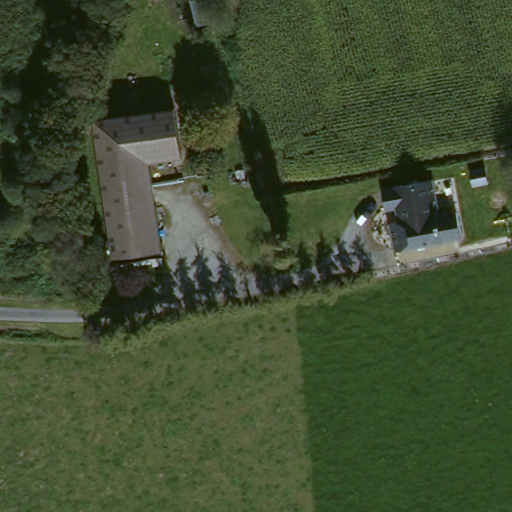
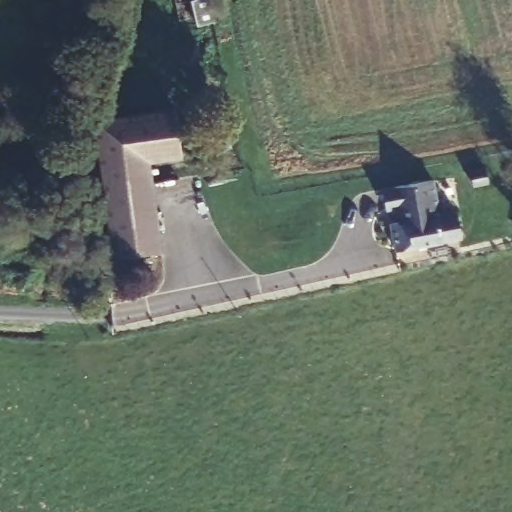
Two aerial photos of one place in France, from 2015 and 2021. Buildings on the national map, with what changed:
unchanged [(218,23),(196,27),(192,0),(214,0),(218,23)]
unchanged [(89,121),(173,104),(181,154),(153,161),(169,246),(116,256),(89,121)]
unchanged [(443,216),(435,215),(402,220),(399,205),(389,207),(386,191),(436,181),(443,216)]
unchanged [(391,223),(402,220),(435,215),(443,216),(456,212),(461,233),(398,248),(391,225),(391,223)]

